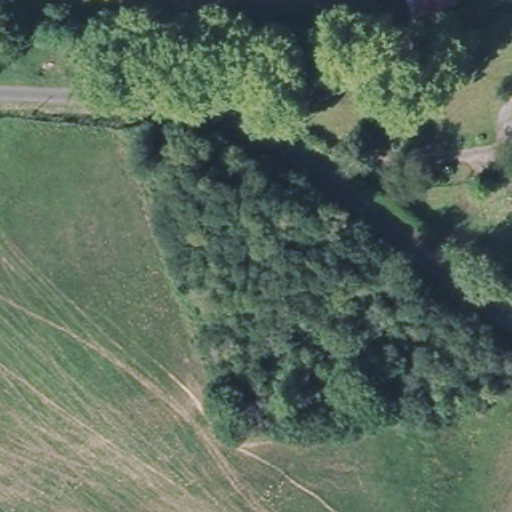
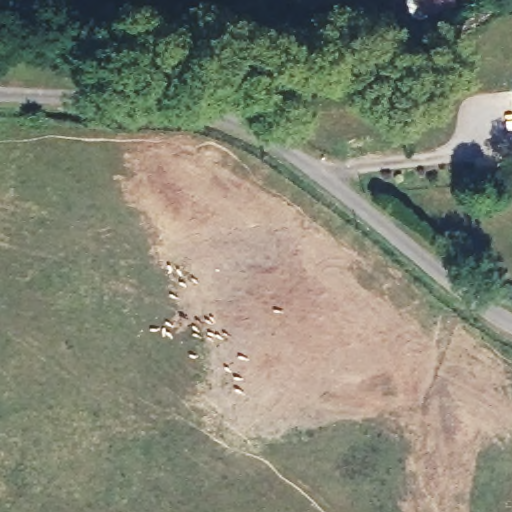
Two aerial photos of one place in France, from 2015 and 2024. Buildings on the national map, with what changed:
unchanged [(408,0),(456,0),(457,8),(411,17),(408,0)]

